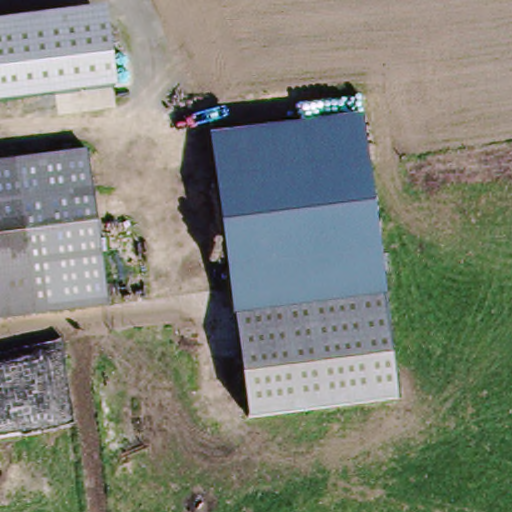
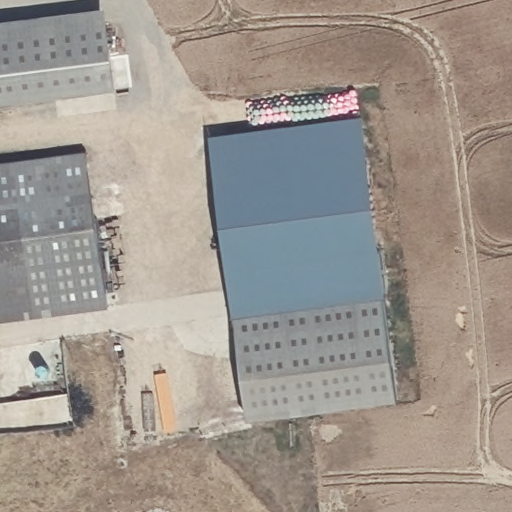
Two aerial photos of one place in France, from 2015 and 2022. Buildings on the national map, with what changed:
unchanged [(105,9),(117,91),(0,106),(0,21),(105,9)]
unchanged [(390,297),(240,317),(217,139),(367,120),(390,297)]
unchanged [(88,146),(108,301),(0,315),(0,158),(88,146)]
unchanged [(390,297),(404,400),(253,421),(240,317),(390,297)]

